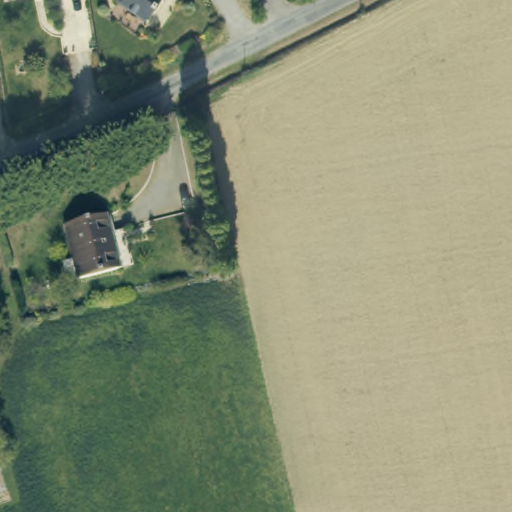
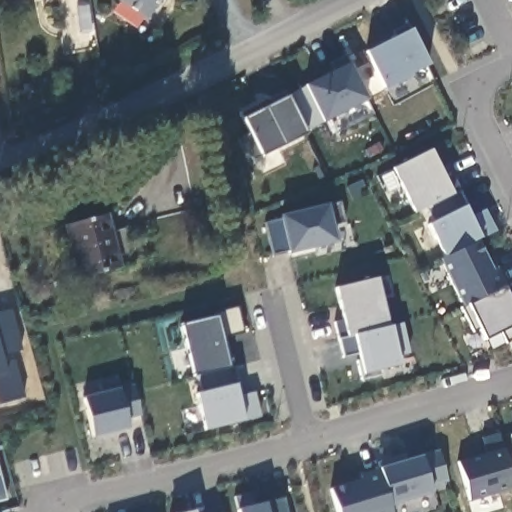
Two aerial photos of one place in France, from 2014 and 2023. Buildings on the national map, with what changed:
unchanged [(118,5),(117,0),(162,0),(146,24),(118,5)]
new [(392,37),(390,31),(405,24),(426,66),(408,75),(410,77),(382,91),(363,52),(392,37)]
new [(324,124),(305,86),(349,62),(367,101),(324,124)]
new [(257,104),(260,109),(269,104),(267,100),(282,91),(304,135),(251,161),(239,138),(247,134),(237,115),(257,104)]
new [(506,343),(500,331),(484,340),(479,330),(474,333),(439,262),(445,258),(427,226),(435,221),(427,209),(415,214),(392,170),(430,150),(443,180),(451,176),(464,207),(470,220),(486,210),(496,232),(481,238),(477,240),(492,271),(497,267),(512,295),(512,340),(506,343)]
new [(278,218),(277,216),(338,201),(343,222),(330,226),(333,242),(313,247),(312,240),(302,242),(304,249),(287,253),(287,252),(270,256),(262,222),(278,218)]
unchanged [(104,215),(119,269),(77,280),(62,226),(104,215)]
new [(342,321),(333,288),(374,278),(386,327),(337,339),(333,323),(342,321)]
new [(233,308),(240,334),(217,340),(221,350),(225,349),(230,368),(192,377),(188,378),(175,322),(233,308)]
new [(386,327),(400,324),(407,354),(396,357),(397,366),(378,371),(380,376),(358,381),(354,362),(360,360),(358,354),(342,358),(337,339),(386,327)]
new [(196,394),(192,377),(230,368),(235,388),(231,389),(234,400),(251,396),(256,418),(200,432),(191,395),(196,394)]
new [(128,422),(131,429),(92,438),(82,399),(102,394),(99,384),(119,379),(122,390),(134,386),(143,417),(128,422)]
new [(483,453),(479,437),(496,432),(512,485),(512,488),(467,502),(455,461),(483,453)]
new [(512,435),(512,451),(507,436),(512,435)]
new [(402,455),(404,461),(437,451),(446,481),(428,486),(430,492),(387,505),(377,470),(375,463),(402,455)]
new [(359,481),(358,476),(377,470),(387,505),(390,512),(335,512),(328,490),(359,481)]
new [(232,497),(250,493),(254,509),(263,507),(262,505),(283,500),(286,512),(236,512),(232,497)]

